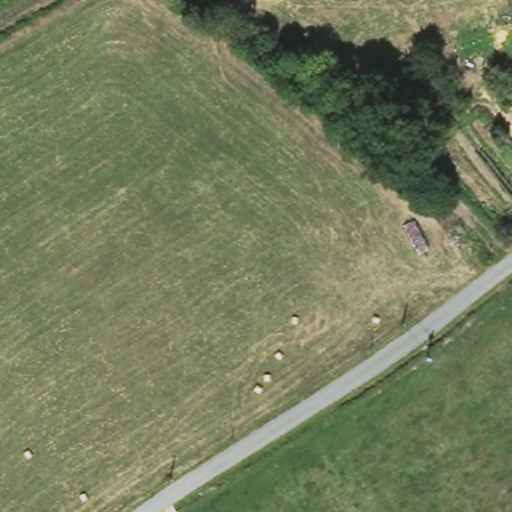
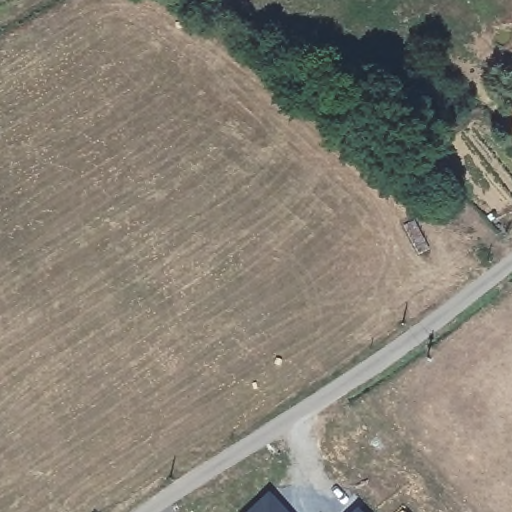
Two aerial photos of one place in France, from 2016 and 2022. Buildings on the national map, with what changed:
new [(246,512),(267,492),(286,512),(246,512)]
new [(361,512),(350,512),(355,507),(361,512)]

